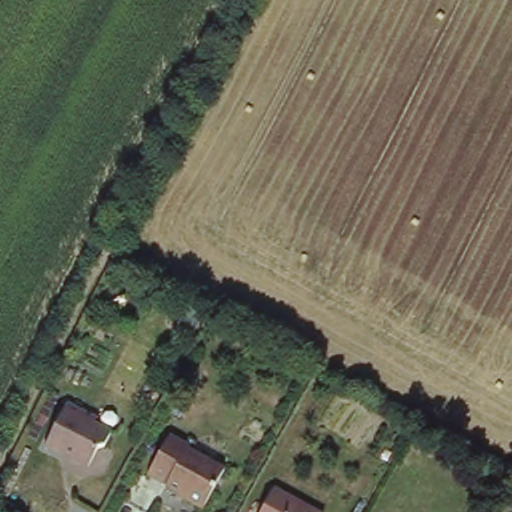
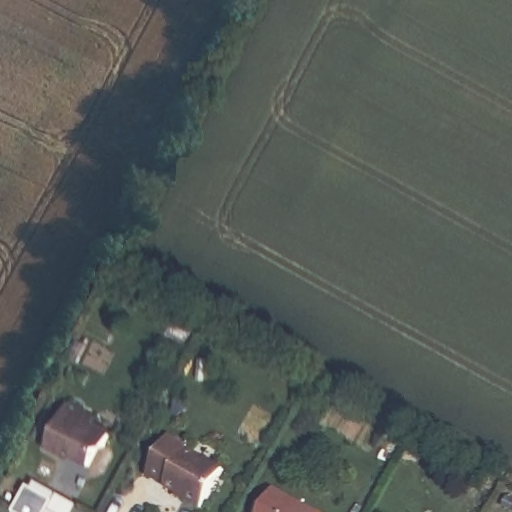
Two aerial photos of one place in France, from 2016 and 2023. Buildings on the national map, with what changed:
unchanged [(99,420),(95,426),(111,436),(104,448),(91,450),(81,466),(58,454),(56,457),(41,448),(66,403),(99,420)]
unchanged [(191,449),(191,450),(225,469),(204,509),(184,499),(185,495),(149,475),(170,436),(191,449)]
new [(31,479),(80,505),(76,512),(13,512),(31,479)]
unchanged [(270,496),(297,509),(296,512),(261,512),(270,496)]

